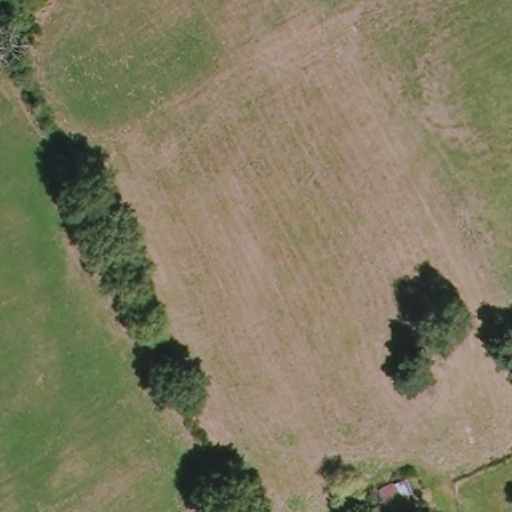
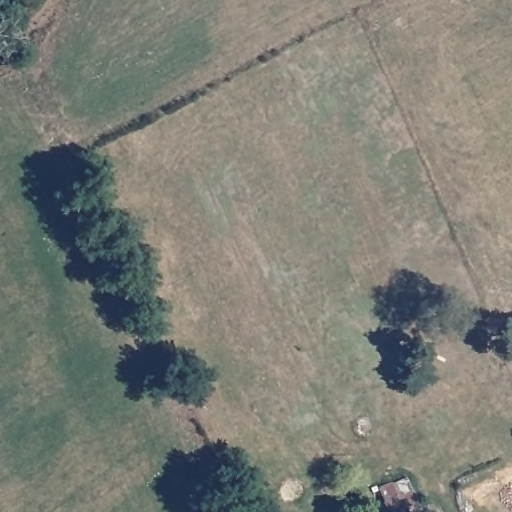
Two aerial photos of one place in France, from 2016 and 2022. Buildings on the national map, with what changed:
unchanged [(389,512),(386,507),(410,492),(422,510),(420,512),(389,512)]

